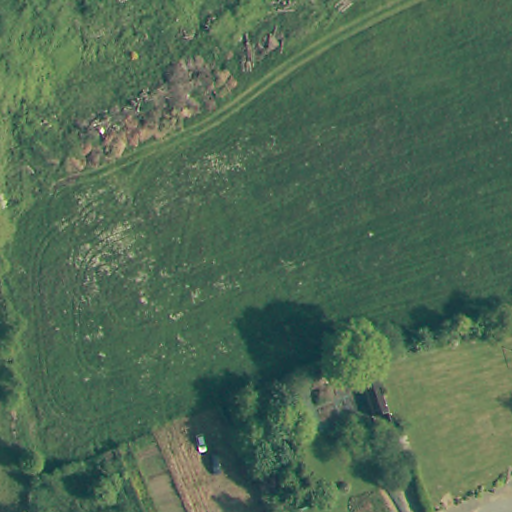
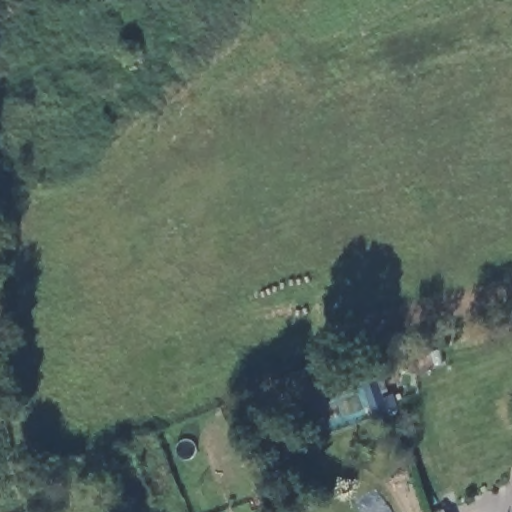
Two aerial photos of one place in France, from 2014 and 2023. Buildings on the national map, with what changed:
unchanged [(358,350),(380,418),(365,423),(343,354),(358,350)]

